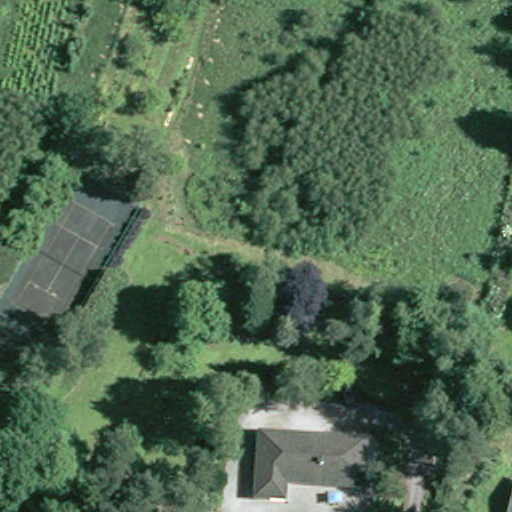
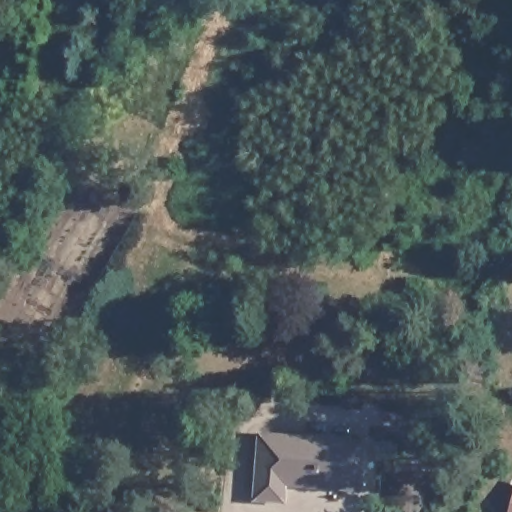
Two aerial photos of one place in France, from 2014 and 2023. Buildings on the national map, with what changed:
unchanged [(377,464),(376,482),(355,480),(355,483),(255,476),(258,432),(358,439),(357,463),(377,464)]
unchanged [(512,486),(512,512),(505,512),(512,486)]

